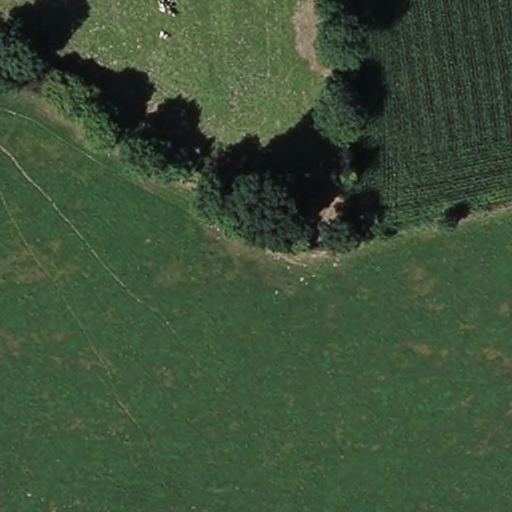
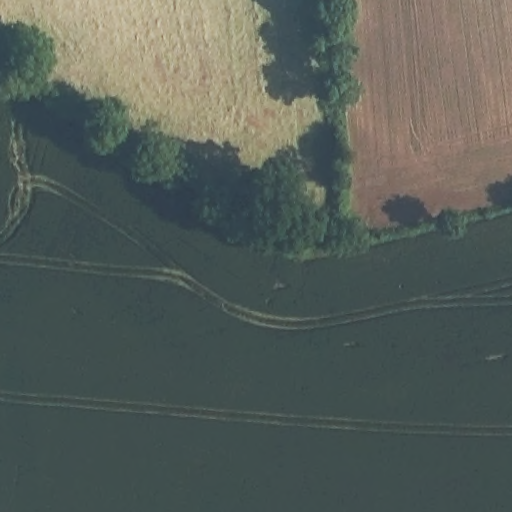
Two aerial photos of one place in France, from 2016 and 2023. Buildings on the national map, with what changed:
[]

